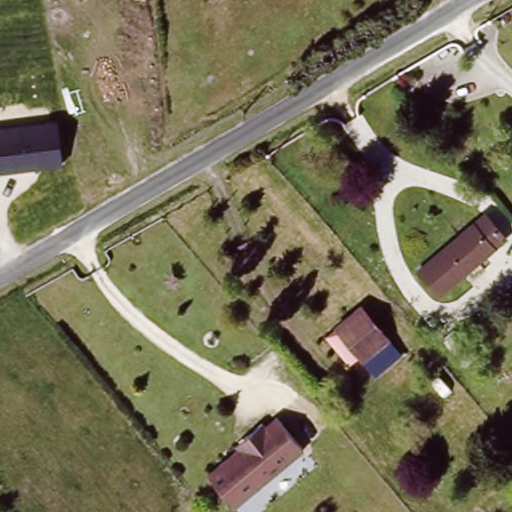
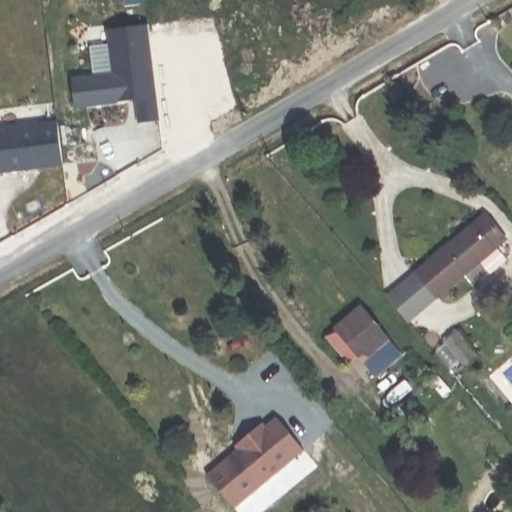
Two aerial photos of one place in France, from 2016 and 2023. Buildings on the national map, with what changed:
new [(138,126),(135,101),(76,109),(71,76),(94,73),(91,45),(111,43),(109,28),(149,24),(160,120),(138,126)]
unchanged [(59,123),(65,166),(0,174),(0,129),(59,123)]
unchanged [(505,241),(431,295),(412,266),(484,209),(505,241)]
unchanged [(390,339),(360,361),(333,323),(362,297),(390,339)]
unchanged [(303,448),(234,507),(223,494),(205,473),(236,447),(232,442),(260,419),(264,424),(275,415),(301,446),(303,448)]

